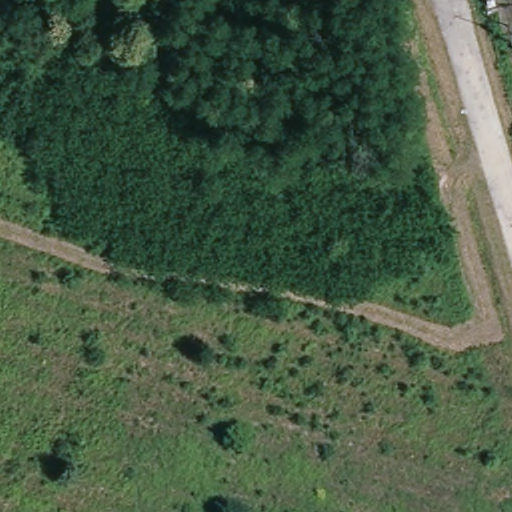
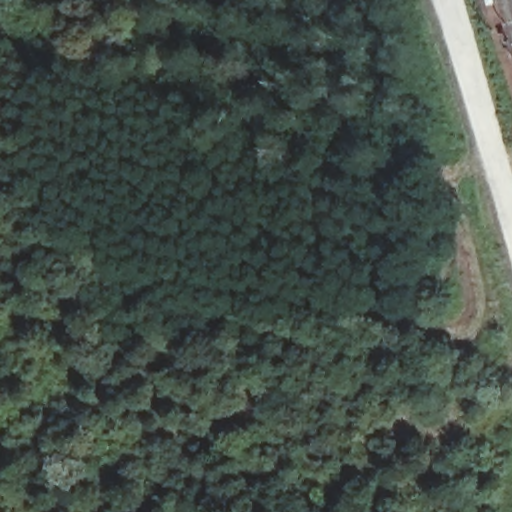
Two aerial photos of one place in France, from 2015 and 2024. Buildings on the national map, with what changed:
[]

